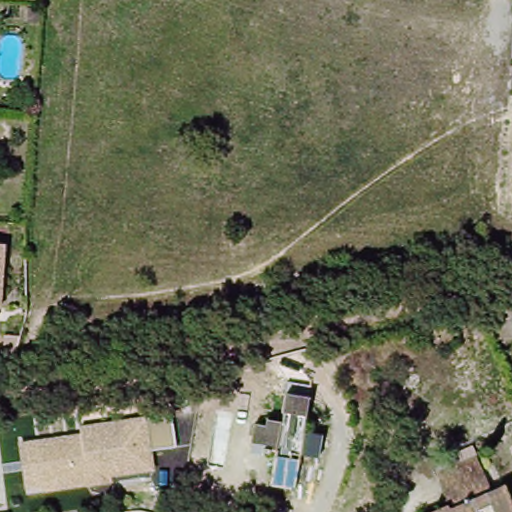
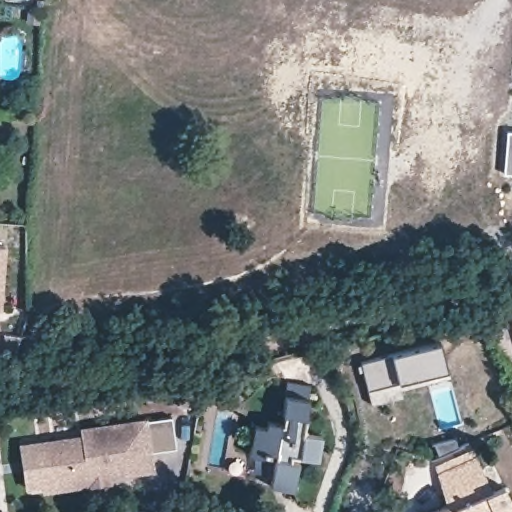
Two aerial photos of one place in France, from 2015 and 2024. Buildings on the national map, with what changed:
unchanged [(10,244),(5,309),(0,308),(0,243),(10,244)]
new [(398,381),(368,389),(362,361),(392,353),(440,340),(447,371),(398,381)]
unchanged [(281,494),(283,478),(285,462),(276,461),(277,468),(256,467),(259,426),(277,426),(277,416),(286,417),(290,386),(315,385),(310,434),(330,434),(329,457),(307,456),(304,466),(312,466),(310,481),(309,497),(281,494)]
unchanged [(78,435),(77,426),(170,413),(175,447),(152,451),(154,471),(112,477),(112,484),(26,494),(19,442),(78,435)]
unchanged [(497,499),(510,496),(512,506),(512,512),(425,512),(454,505),(457,504),(454,497),(448,473),(487,463),(497,499)]

